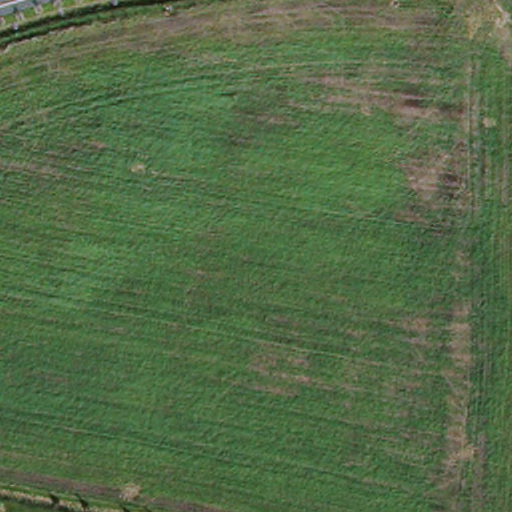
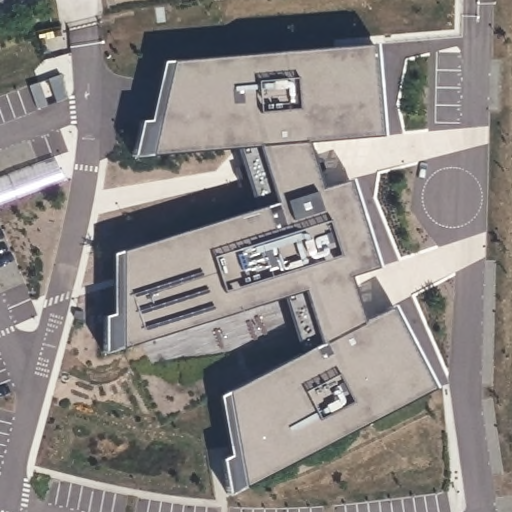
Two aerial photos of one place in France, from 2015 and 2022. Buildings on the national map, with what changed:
new [(235,388),(300,355),(282,297),(122,351),(120,251),(257,209),(235,150),(152,159),(172,60),(376,45),(383,137),(306,144),(322,189),(350,181),(378,268),(348,277),(363,321),(393,305),(435,388),(244,488),(235,388)]
new [(141,125),(152,121),(163,62),(172,60),(152,159),(134,162),(141,125)]
new [(113,315),(112,255),(120,251),(122,351),(122,352),(105,359),(104,321),(113,315)]
new [(232,452),(227,392),(235,388),(244,488),(227,496),(224,459),(232,452)]

